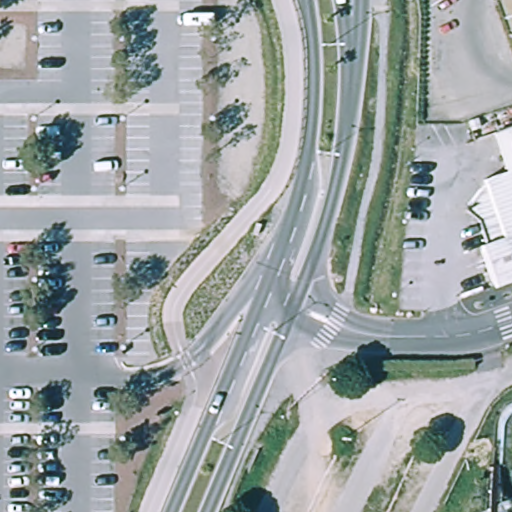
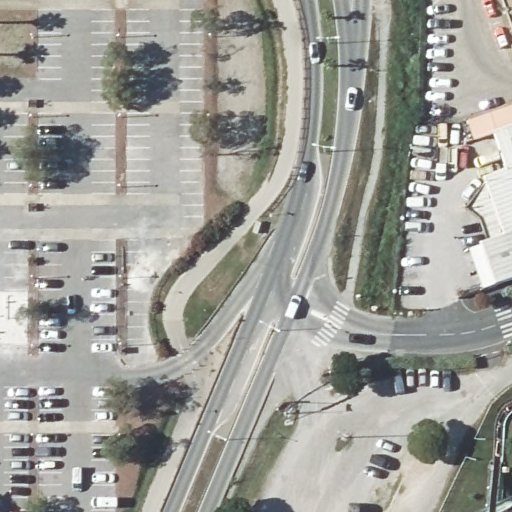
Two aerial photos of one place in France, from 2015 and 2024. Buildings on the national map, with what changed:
unchanged [(512,0),(512,45),(497,0),(512,0)]
unchanged [(482,246),(495,242),(478,201),(490,185),(505,179),(490,135),(512,127),(512,282),(499,287),(482,246)]

